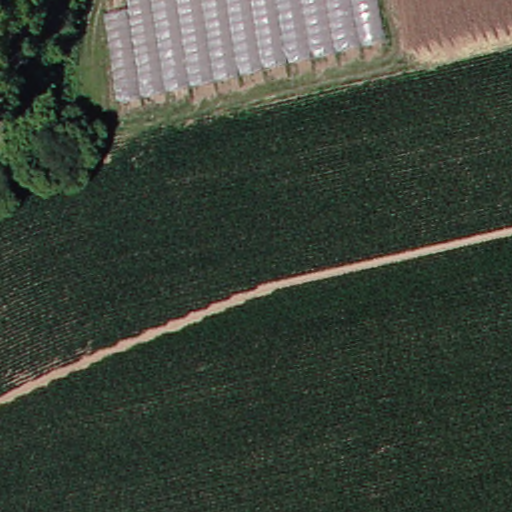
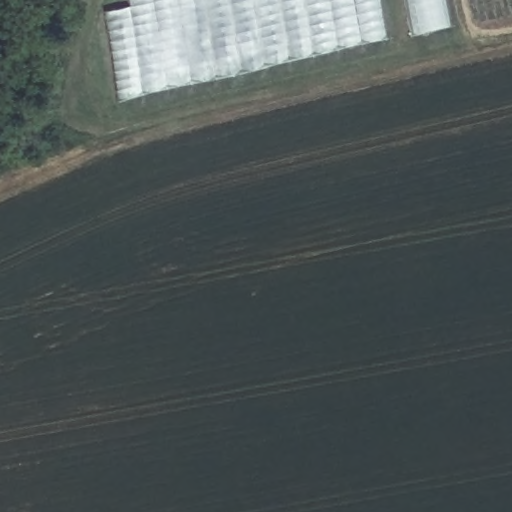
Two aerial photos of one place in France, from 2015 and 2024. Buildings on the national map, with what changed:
unchanged [(108,13),(113,0),(379,0),(386,38),(115,99),(108,13)]
new [(410,36),(403,0),(441,0),(446,29),(410,36)]

